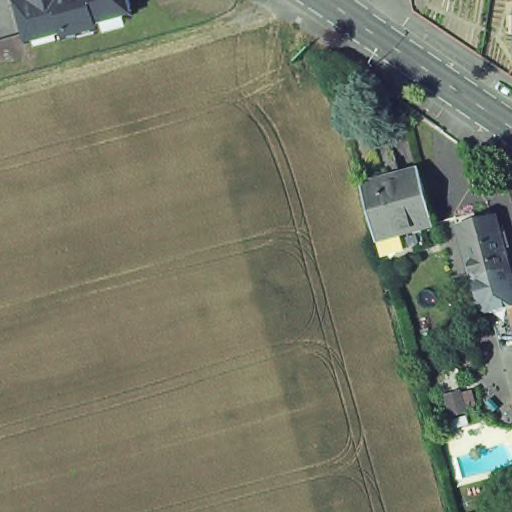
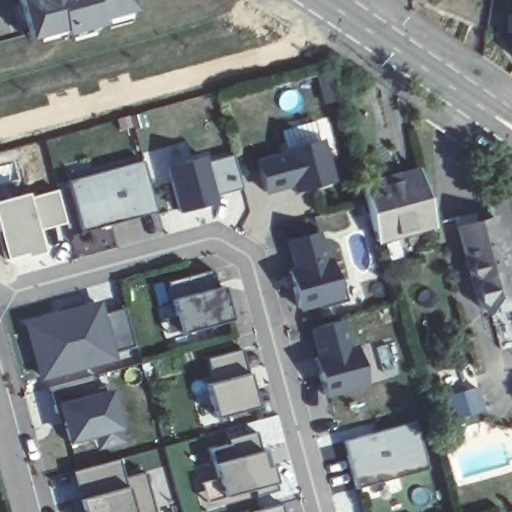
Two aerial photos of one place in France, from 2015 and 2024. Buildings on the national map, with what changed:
unchanged [(15,0),(108,0),(124,0),(127,10),(127,16),(114,20),(92,26),(93,31),(62,40),(61,35),(42,40),(41,40),(25,44),(24,40),(14,0),(15,0)]
unchanged [(505,67),(505,21),(510,21),(510,14),(512,14),(512,68),(505,67)]
new [(295,191),(293,183),(264,191),(257,162),(285,154),(284,150),(321,140),(332,180),(311,186),(296,190),(295,191)]
new [(202,156),(204,162),(233,155),(242,188),(213,196),(215,202),(179,211),(167,166),(202,156)]
new [(68,180),(70,185),(142,165),(141,160),(142,160),(156,211),(155,211),(154,208),(81,228),(82,231),(81,232),(67,180),(68,180)]
unchanged [(357,186),(414,171),(429,225),(372,241),(357,186)]
new [(70,225),(47,230),(51,251),(12,262),(0,230),(0,196),(55,181),(70,225)]
unchanged [(457,222),(477,216),(479,226),(497,221),(512,279),(512,289),(491,295),(487,279),(474,282),(460,232),(457,222)]
new [(327,258),(329,257),(336,283),(342,281),(346,300),(319,308),(318,305),(297,311),(286,269),(292,267),(285,240),(319,231),(327,258)]
new [(212,270),(217,288),(221,286),(231,320),(181,333),(168,335),(164,319),(176,316),(172,300),(167,282),(212,270)]
unchanged [(511,313),(497,317),(492,317),(487,315),(483,312),(474,282),(487,279),(491,295),(512,289),(512,313),(511,313)]
new [(116,360),(40,381),(24,321),(101,300),(104,313),(124,308),(134,346),(114,351),(116,360)]
unchanged [(511,313),(512,313),(512,317),(511,313)]
new [(350,346),(356,345),(366,382),(367,386),(323,397),(312,355),(317,355),(311,328),(343,320),(350,346)]
new [(257,406),(215,418),(206,385),(213,382),(207,358),(242,349),(257,406)]
new [(95,439),(71,445),(71,442),(66,444),(56,402),(51,388),(92,376),(95,388),(110,385),(126,443),(97,450),(95,439)]
unchanged [(449,405),(465,400),(469,415),(452,419),(449,405)]
new [(415,421),(428,468),(427,469),(426,465),(356,484),(357,488),(356,488),(342,440),(415,421)]
new [(260,451),(266,450),(271,465),(272,466),(276,482),(277,490),(257,496),(256,488),(223,497),(211,501),(207,502),(202,484),(218,480),(215,465),(210,450),(229,445),(227,438),(256,432),(260,451)]
new [(74,470),(119,457),(124,478),(144,472),(155,512),(85,512),(74,470)]
new [(282,505),(278,505),(280,512),(250,512),(281,503),(282,505)]

